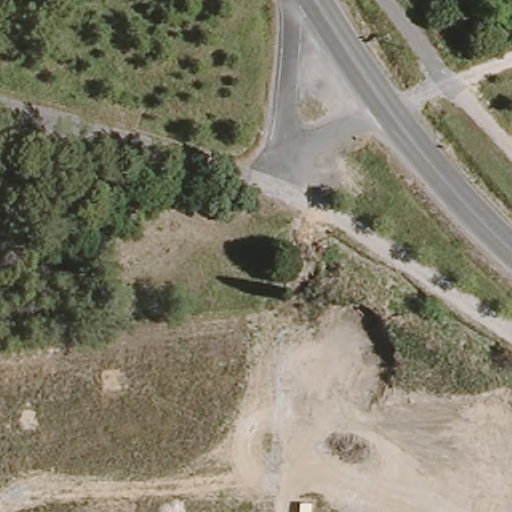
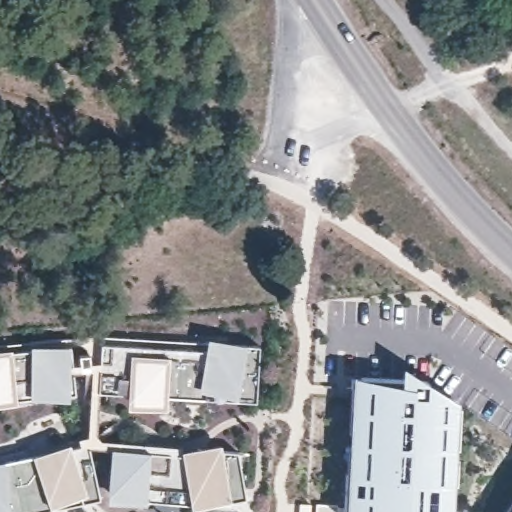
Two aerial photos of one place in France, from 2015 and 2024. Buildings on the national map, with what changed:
new [(144,340),(183,343),(263,348),(260,395),(101,384),(104,337),(144,340)]
new [(73,340),(78,387),(0,395),(0,347),(31,344),(73,340)]
new [(402,365),(460,400),(454,512),(345,512),(352,375),(403,385),(402,365)]
new [(101,384),(260,395),(259,404),(100,393),(101,384)]
new [(78,396),(0,404),(0,395),(78,387),(78,396)]
new [(236,503),(236,510),(118,499),(118,490),(123,442),(161,446),(200,449),(241,453),(249,500),(236,503)]
new [(100,492),(6,512),(0,512),(0,465),(90,445),(100,492)]
new [(103,501),(51,512),(6,512),(100,492),(103,501)]
new [(505,512),(512,502),(512,512),(505,512)]

